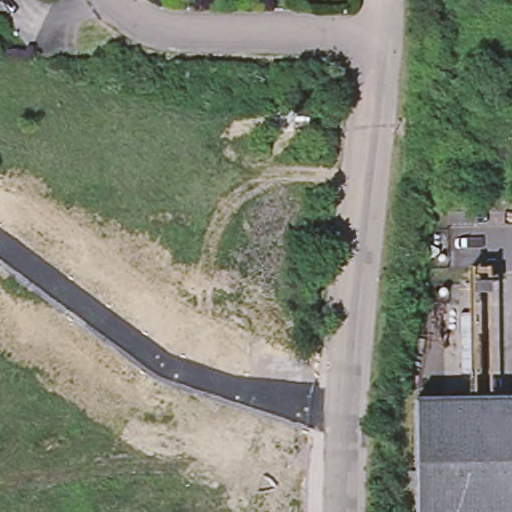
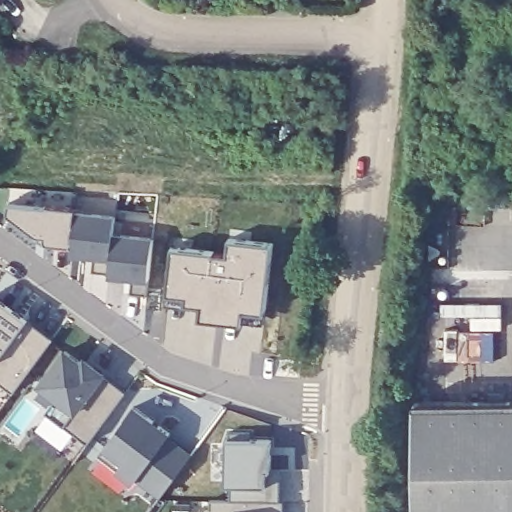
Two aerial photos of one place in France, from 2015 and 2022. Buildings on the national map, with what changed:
new [(72,245),(47,243),(9,214),(10,204),(75,210),(112,212),(110,232),(152,236),(150,280),(147,294),(132,293),(132,278),(109,276),(109,272),(93,270),(94,256),(71,255),(72,245)]
new [(174,247),(228,254),(230,239),(272,244),(266,310),(264,321),(242,318),(241,322),(201,318),(202,304),(188,302),(187,306),(167,303),(169,293),(174,247)]
new [(17,318),(26,324),(29,320),(55,340),(15,393),(0,383),(0,302),(19,316),(17,318)]
new [(65,425),(46,410),(55,397),(38,384),(65,347),(84,360),(87,357),(107,371),(105,376),(127,391),(87,441),(65,425)]
unchanged [(424,390),(512,393),(512,512),(420,512),(424,390)]
new [(135,407),(155,422),(152,426),(158,430),(161,426),(172,434),(169,438),(193,456),(163,496),(139,478),(136,482),(100,455),(135,407)]
new [(211,501),(285,502),(285,512),(211,512),(211,501)]

